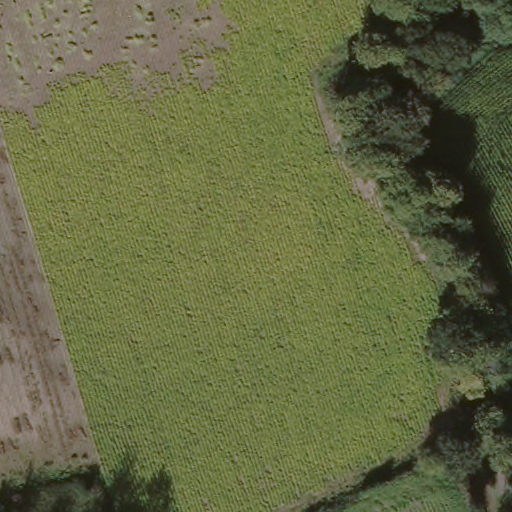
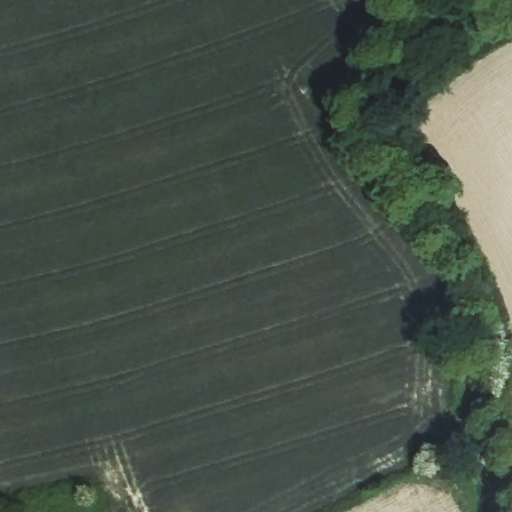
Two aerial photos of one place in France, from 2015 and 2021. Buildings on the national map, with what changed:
[]

